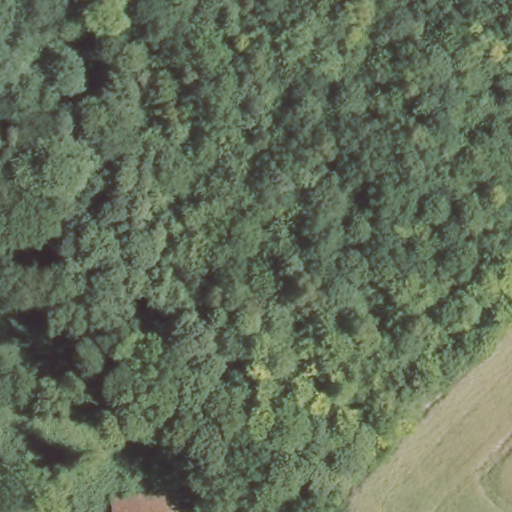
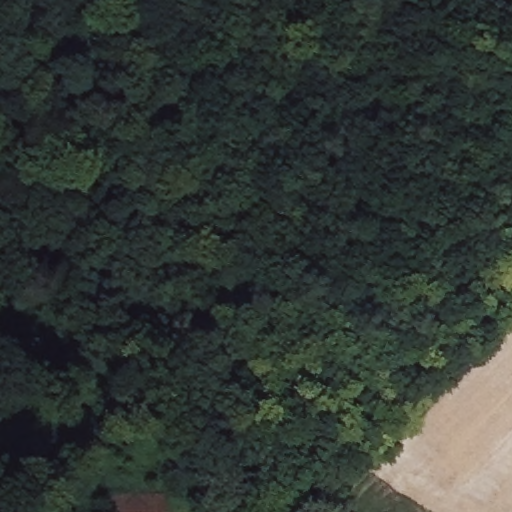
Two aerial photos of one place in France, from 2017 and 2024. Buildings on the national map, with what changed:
unchanged [(157,499),(158,512),(105,512),(105,502),(157,499)]

